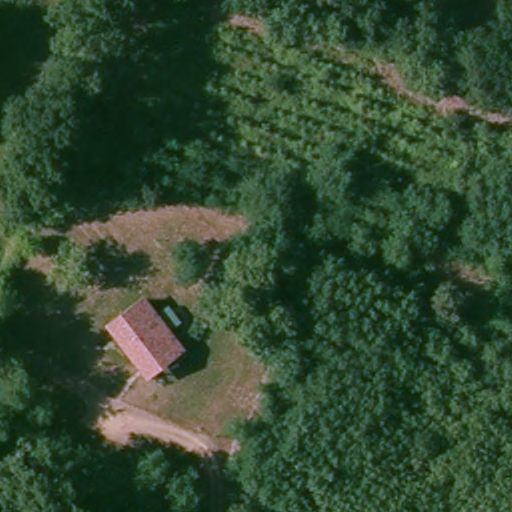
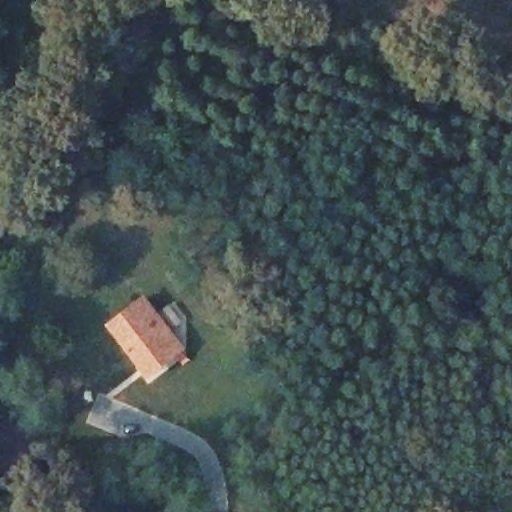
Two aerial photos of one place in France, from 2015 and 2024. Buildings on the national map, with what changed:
unchanged [(140,300),(182,346),(150,375),(108,329),(140,300)]

